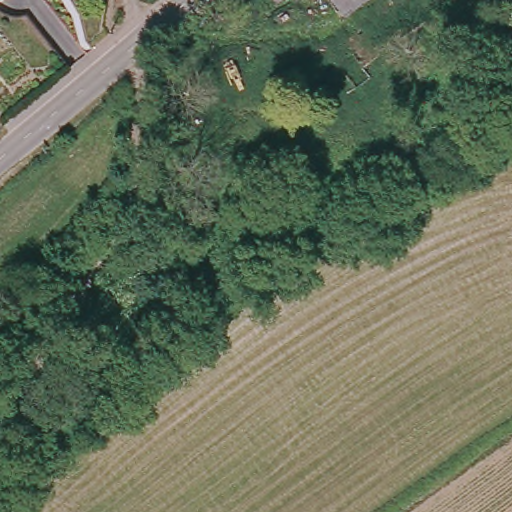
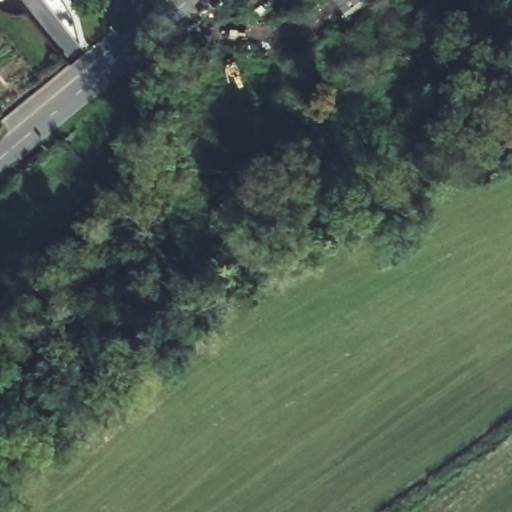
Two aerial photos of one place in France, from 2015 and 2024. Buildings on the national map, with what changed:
unchanged [(4,0),(8,0),(5,2),(4,0)]
unchanged [(270,0),(272,0),(270,1),(270,0)]

